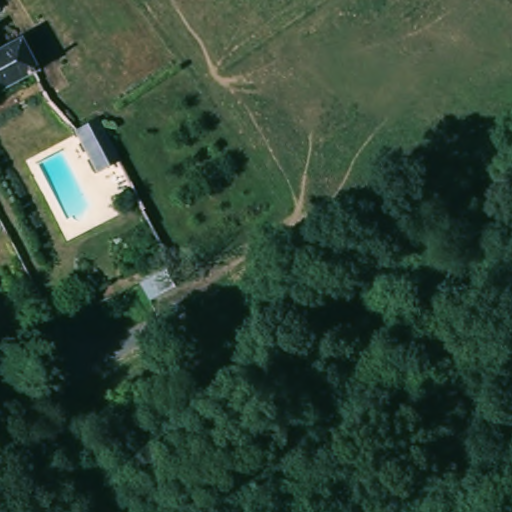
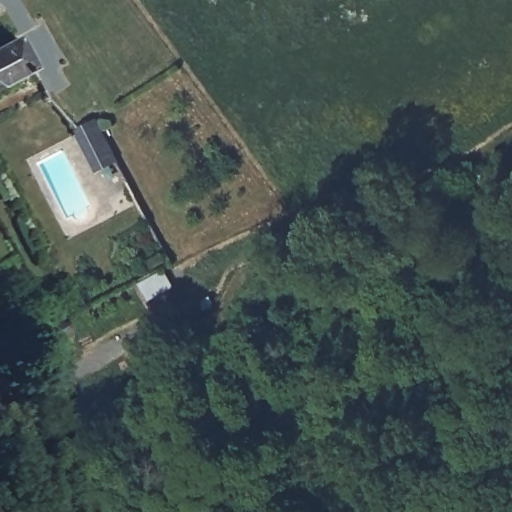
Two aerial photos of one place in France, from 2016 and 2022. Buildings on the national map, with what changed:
unchanged [(18,38),(36,70),(0,89),(0,47),(18,38)]
unchanged [(48,92),(0,118),(0,89),(36,70),(48,92)]
unchanged [(91,121),(114,161),(92,172),(70,132),(91,121)]
unchanged [(37,353),(29,338),(62,319),(71,336),(37,353)]

